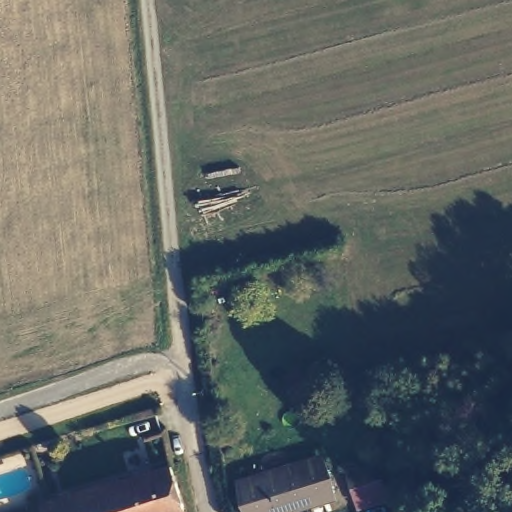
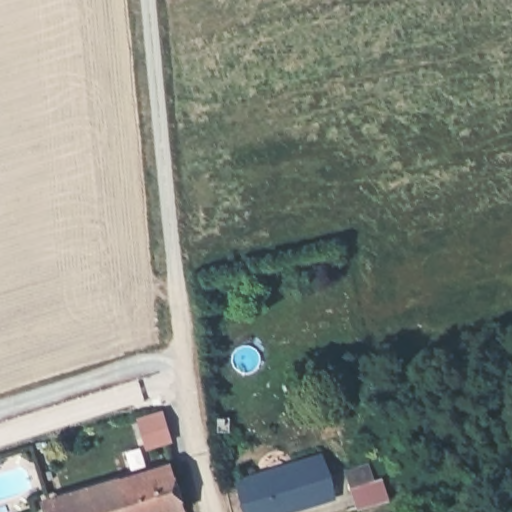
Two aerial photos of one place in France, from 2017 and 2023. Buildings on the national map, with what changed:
unchanged [(320,456),(328,491),(245,510),(236,474),(320,456)]
unchanged [(173,459),(183,504),(154,512),(47,512),(43,497),(173,459)]
unchanged [(384,497),(359,505),(354,487),(380,480),(384,497)]

